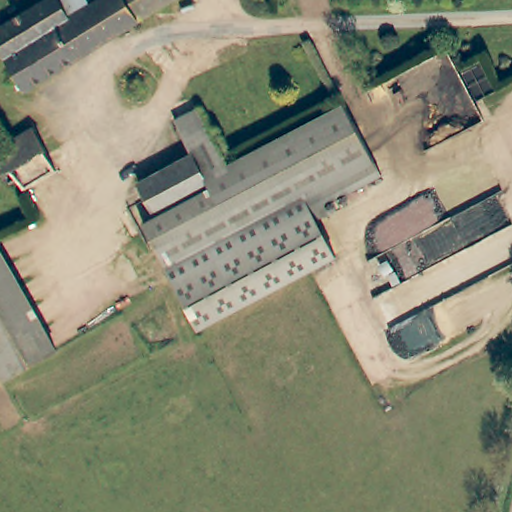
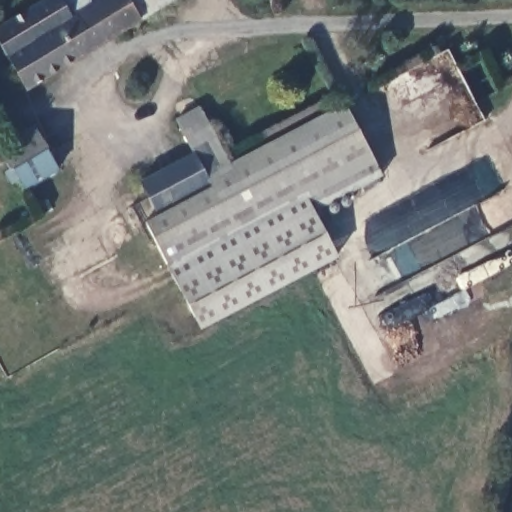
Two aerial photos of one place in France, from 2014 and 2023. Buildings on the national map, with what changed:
unchanged [(28,90),(0,42),(0,33),(55,0),(175,0),(28,90)]
unchanged [(215,127),(235,165),(344,106),(383,178),(319,212),(180,287),(179,288),(144,217),(156,210),(205,183),(190,153),(173,119),(197,107),(209,131),(215,127)]
unchanged [(37,123),(62,168),(30,186),(19,164),(14,166),(10,159),(7,160),(3,159),(1,156),(0,155),(0,150),(2,147),(0,144),(8,139),(37,123)]
unchanged [(139,179),(190,153),(205,183),(156,210),(139,179)]
unchanged [(337,245),(199,322),(180,287),(319,212),(337,245)]
demolished [(61,355),(10,383),(0,365),(0,245),(61,355)]

